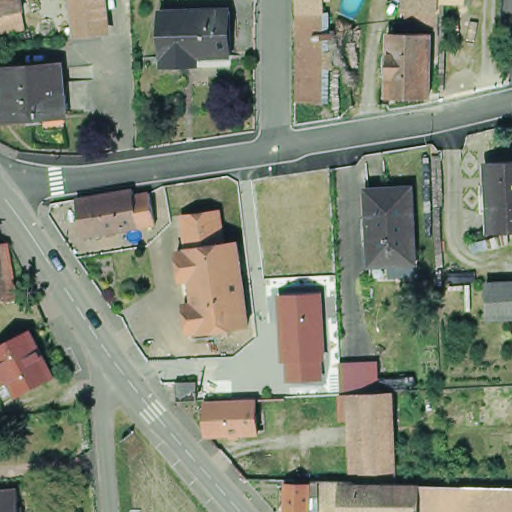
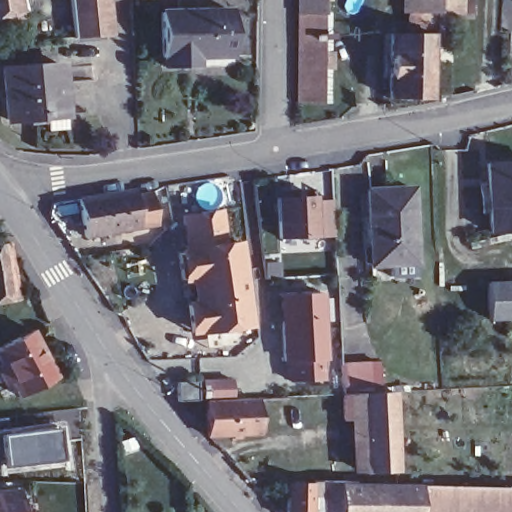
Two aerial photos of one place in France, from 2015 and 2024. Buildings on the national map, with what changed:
unchanged [(0,0),(18,0),(20,11),(0,15),(0,0)]
unchanged [(101,0),(105,33),(74,36),(69,0),(101,0)]
unchanged [(318,6),(318,18),(321,18),(321,107),(291,106),(291,46),(291,0),(311,0),(311,6),(318,6)]
unchanged [(192,61),(186,61),(160,61),(159,52),(157,52),(155,7),(226,5),(227,45),(226,50),(226,59),(192,61)]
unchanged [(424,34),(422,98),(382,98),(382,35),(424,34)]
unchanged [(1,69),(60,65),(64,115),(5,119),(2,89),(2,81),(1,69)]
unchanged [(510,238),(509,230),(479,231),(477,207),(470,208),(470,191),(476,191),(475,163),(512,160),(512,238),(510,238)]
unchanged [(378,276),(377,264),(360,265),(356,191),(401,188),(404,256),(404,263),(405,275),(378,276)]
unchanged [(112,192),(127,190),(133,227),(78,237),(72,199),(112,192)]
new [(316,194),(316,197),(331,197),(334,236),(279,239),(277,196),(316,194)]
unchanged [(194,304),(191,278),(180,279),(176,253),(186,251),(181,216),(217,212),(222,245),(235,243),(242,293),(247,326),(198,333),(197,330),(188,332),(184,305),(194,304)]
unchanged [(0,297),(0,240),(14,238),(24,294),(0,297)]
unchanged [(509,322),(462,324),(461,288),(512,285),(512,321),(509,322)]
unchanged [(287,381),(287,361),(282,362),(279,296),(319,294),(323,360),(319,360),(320,380),(287,381)]
unchanged [(55,372),(17,391),(9,376),(6,377),(3,372),(0,374),(0,340),(30,325),(55,372)]
unchanged [(379,391),(392,390),(398,481),(512,489),(512,512),(337,512),(346,481),(344,423),(339,423),(337,398),(336,363),(372,361),(379,391)]
unchanged [(174,382),(195,381),(197,400),(185,401),(175,402),(174,382)]
unchanged [(204,402),(255,400),(257,433),(205,436),(204,402)]
new [(0,451),(0,417),(15,416),(17,423),(56,418),(55,410),(77,407),(80,438),(60,441),(62,461),(2,467),(0,451)]
unchanged [(305,512),(281,512),(282,488),(310,482),(305,512)]
unchanged [(14,512),(0,512),(0,492),(12,491),(14,512)]

